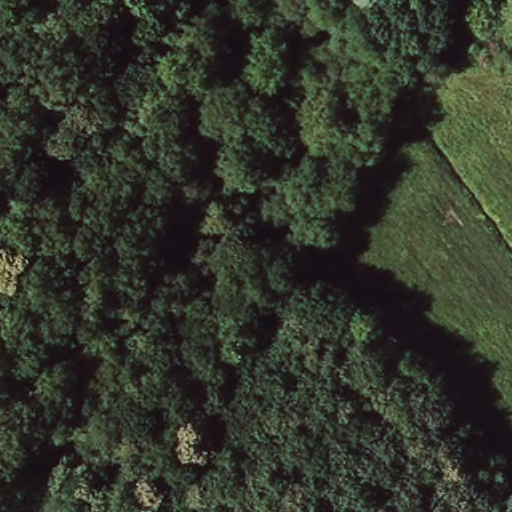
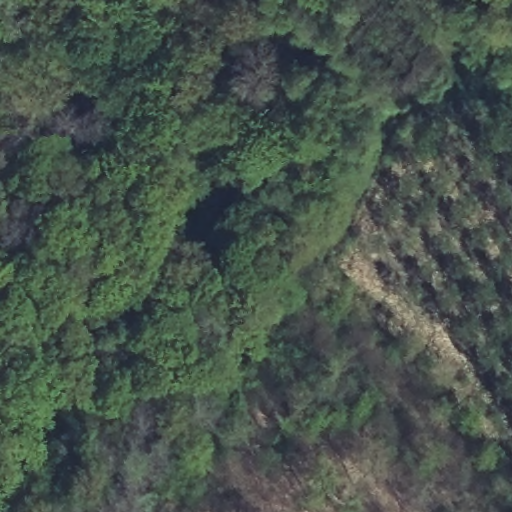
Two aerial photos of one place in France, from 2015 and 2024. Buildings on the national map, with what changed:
[]

